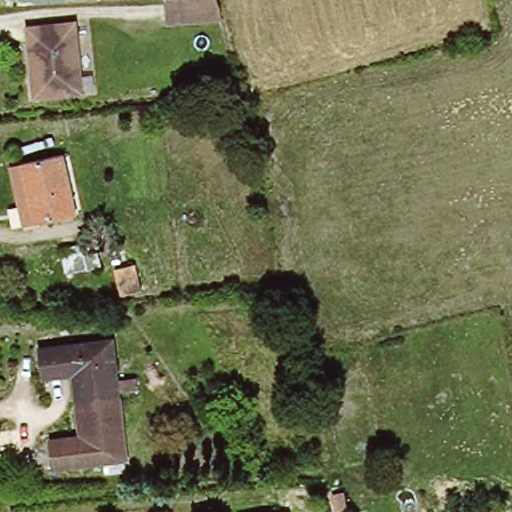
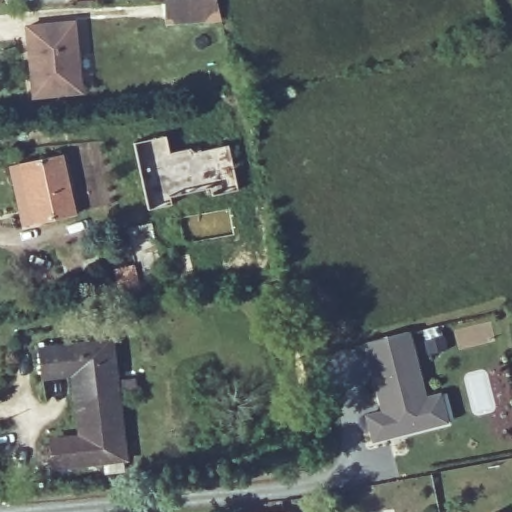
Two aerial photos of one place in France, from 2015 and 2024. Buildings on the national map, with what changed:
unchanged [(162,30),(160,2),(180,0),(212,0),(219,25),(162,30)]
unchanged [(36,102),(31,44),(22,45),(23,28),(72,26),(79,99),(36,102)]
new [(167,135),(171,151),(191,147),(196,151),(230,143),(241,188),(215,194),(213,186),(173,195),(174,204),(151,209),(135,142),(167,135)]
unchanged [(13,165),(23,163),(67,155),(77,214),(35,221),(24,223),(13,165)]
unchanged [(123,297),(119,271),(147,267),(151,294),(123,297)]
new [(375,439),(368,414),(385,410),(382,403),(367,341),(410,330),(427,397),(442,393),(448,421),(433,424),(408,430),(398,433),(375,439)]
unchanged [(110,343),(122,466),(50,470),(50,450),(82,447),(77,367),(41,370),(39,349),(110,343)]
unchanged [(352,507),(351,482),(362,481),(364,506),(359,506),(352,507)]

